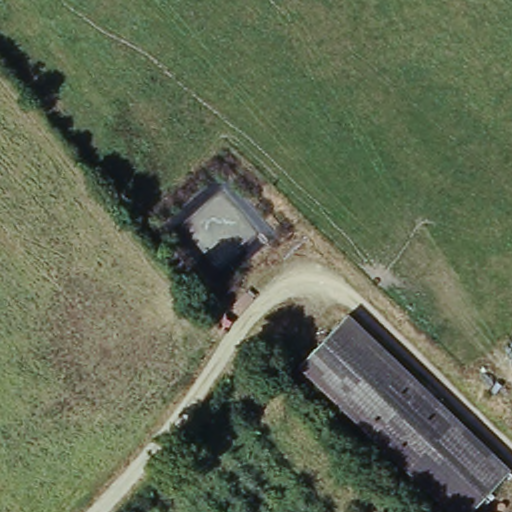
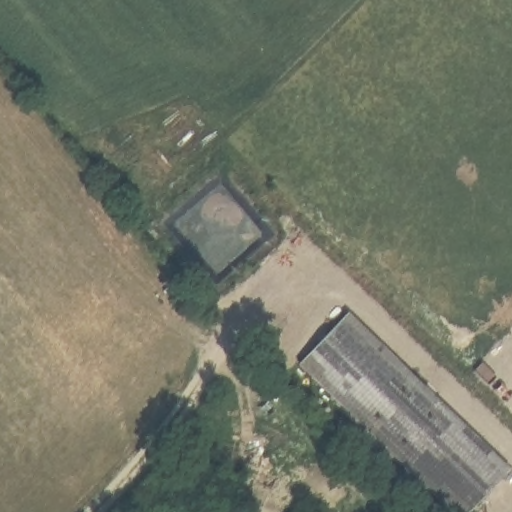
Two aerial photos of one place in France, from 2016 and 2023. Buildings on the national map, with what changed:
unchanged [(475,512),(445,512),(293,365),(351,315),(508,477),(475,512)]

